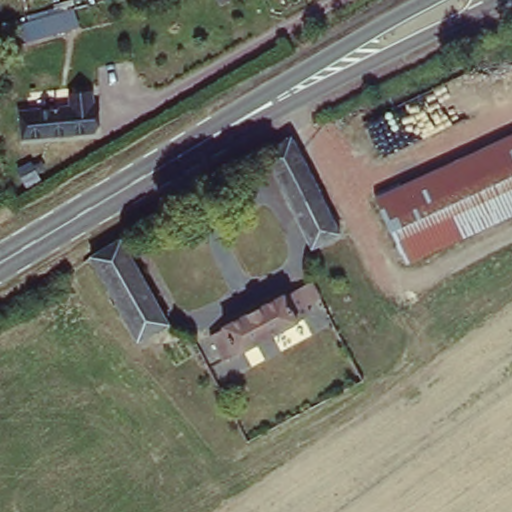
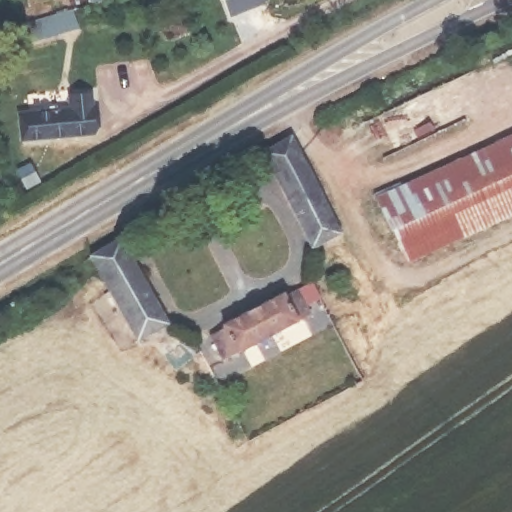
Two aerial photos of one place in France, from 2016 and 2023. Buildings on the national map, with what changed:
new [(232,14),(226,0),(264,0),(232,14)]
unchanged [(19,24),(78,6),(86,30),(27,44),(19,24)]
unchanged [(15,114),(31,112),(65,108),(65,99),(89,97),(91,135),(34,142),(20,144),(15,114)]
unchanged [(338,232),(308,249),(262,154),(292,137),(338,232)]
unchanged [(377,200),(404,186),(406,191),(512,139),(512,182),(397,239),(377,200)]
unchanged [(512,182),(512,213),(409,262),(397,239),(512,182)]
unchanged [(165,327),(135,342),(89,256),(122,237),(165,327)]
unchanged [(318,313),(230,357),(216,331),(229,324),(229,318),(285,291),(290,293),(305,287),(318,313)]

